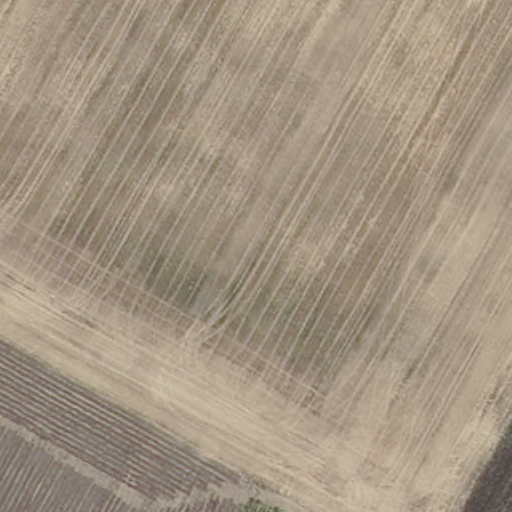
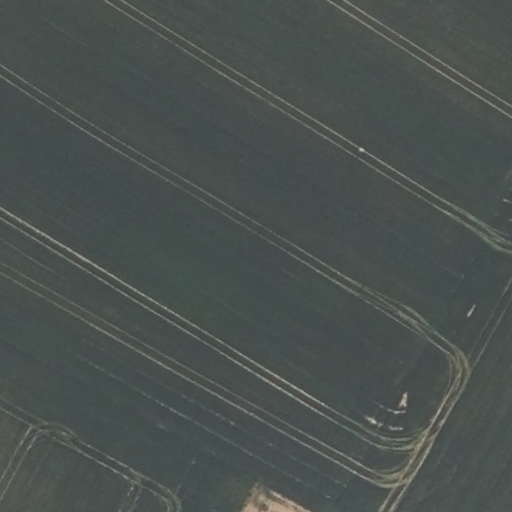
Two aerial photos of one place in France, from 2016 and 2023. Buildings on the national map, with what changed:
[]

